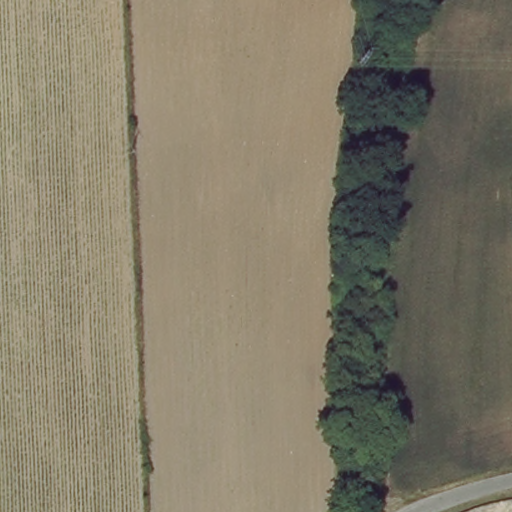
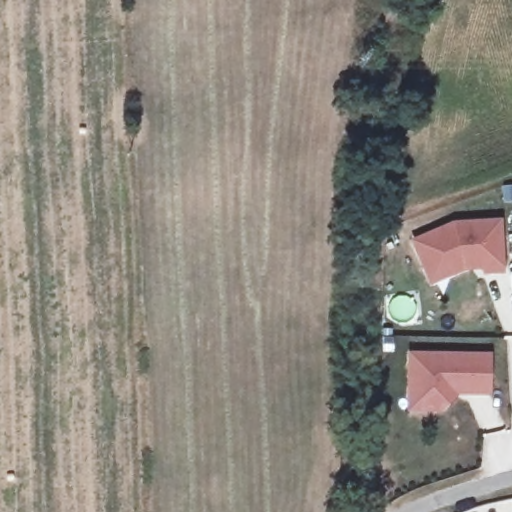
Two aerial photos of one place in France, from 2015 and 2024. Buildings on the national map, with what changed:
new [(429,273),(416,242),(457,225),(503,222),(505,272),(487,273),(486,259),(470,259),(470,267),(454,274),(433,283),(429,273)]
new [(411,397),(413,353),(492,354),(491,392),(473,391),(473,389),(457,388),(457,396),(444,409),(411,408),(411,397)]

